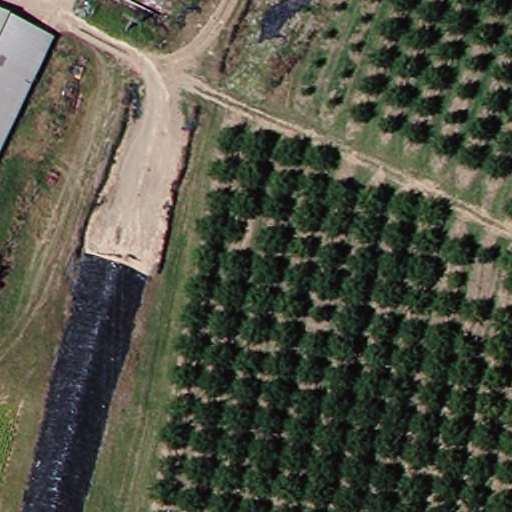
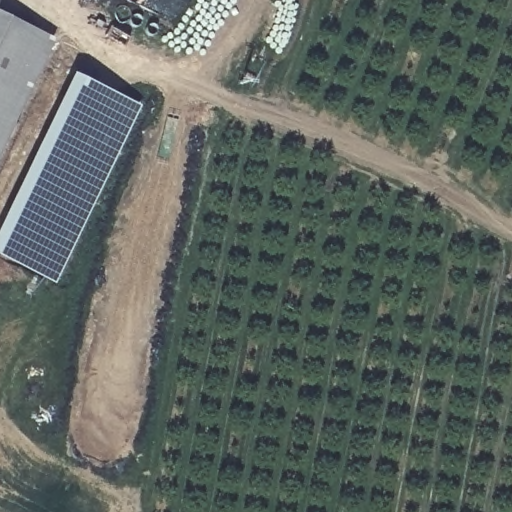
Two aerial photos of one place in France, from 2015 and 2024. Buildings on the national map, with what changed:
unchanged [(0,154),(0,12),(56,36),(0,154)]
new [(0,257),(0,221),(72,73),(139,106),(54,284),(0,257)]

